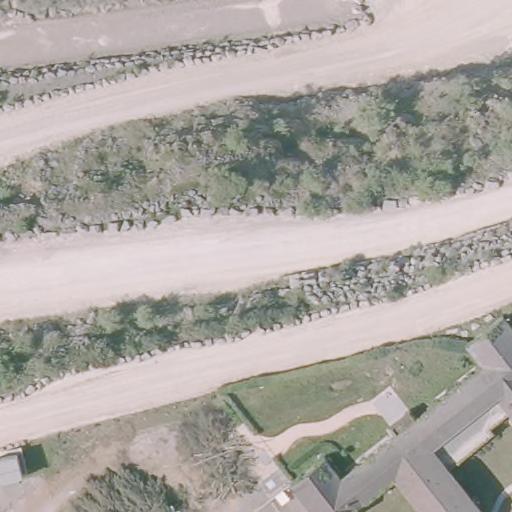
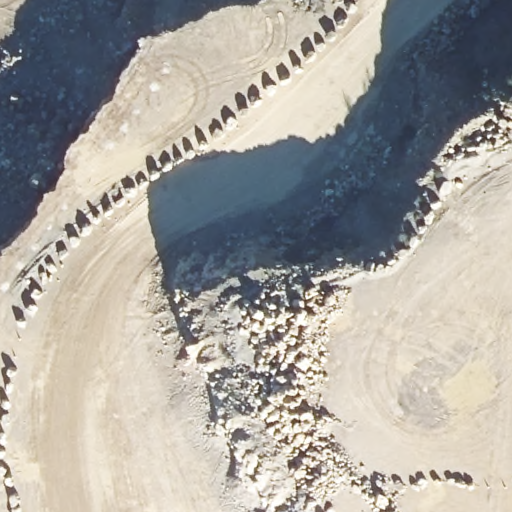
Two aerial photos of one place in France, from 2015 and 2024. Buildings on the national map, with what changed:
demolished [(292,483),(289,480),(330,449),(340,464),(472,359),(465,348),(507,316),(512,323),(512,327),(492,358),(353,470),(374,493),(349,512),(315,512),(292,483)]
demolished [(508,411),(484,427),(493,439),(445,474),(465,500),(433,512),(412,512),(387,482),(374,493),(353,470),(492,358),(512,327),(512,415),(508,411)]
demolished [(465,500),(474,512),(433,512),(465,500)]

